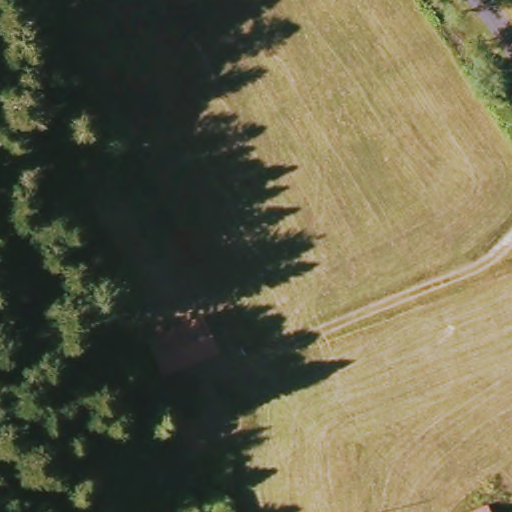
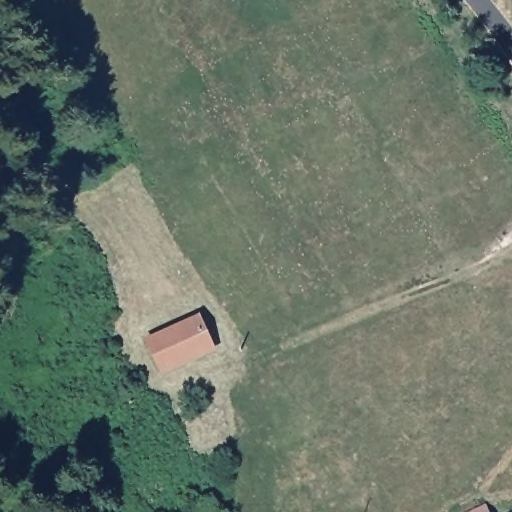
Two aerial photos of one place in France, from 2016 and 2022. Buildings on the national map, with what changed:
unchanged [(174,373),(157,342),(201,319),(217,351),(174,373)]

